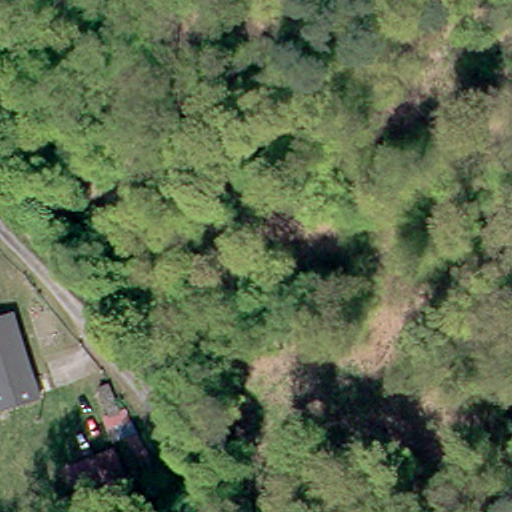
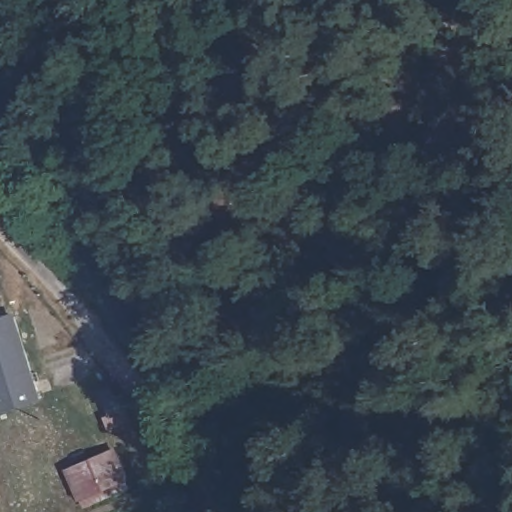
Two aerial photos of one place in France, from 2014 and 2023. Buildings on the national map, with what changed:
unchanged [(38,395),(0,407),(0,317),(13,314),(38,395)]
unchanged [(82,501),(79,494),(68,465),(115,446),(127,474),(130,482),(82,501)]

